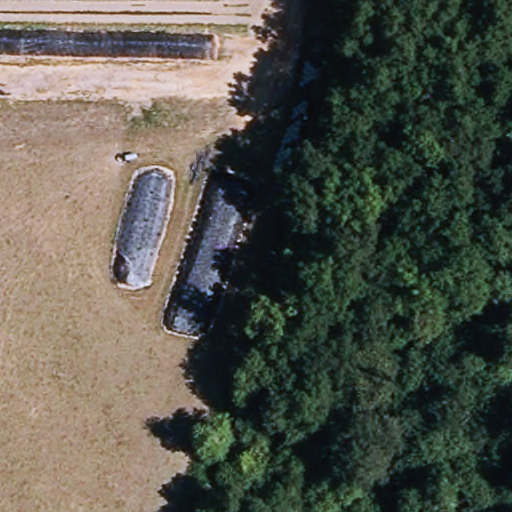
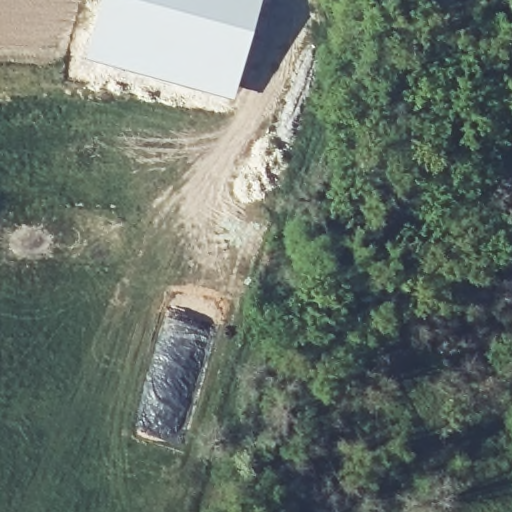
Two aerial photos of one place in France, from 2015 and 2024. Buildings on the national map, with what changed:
new [(102,0),(262,0),(234,100),(84,58),(102,0)]

